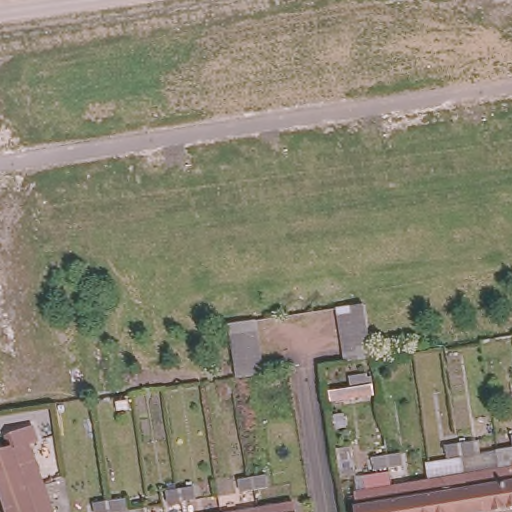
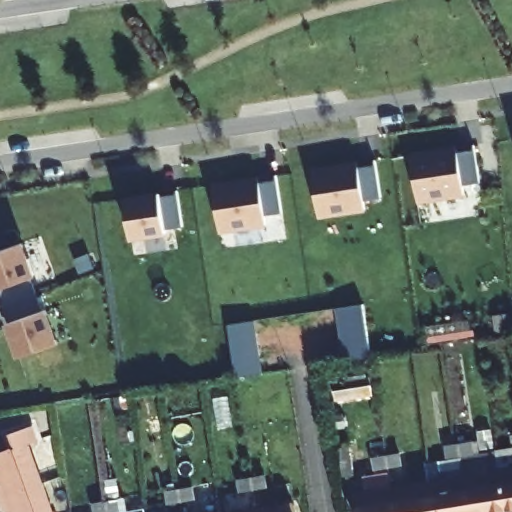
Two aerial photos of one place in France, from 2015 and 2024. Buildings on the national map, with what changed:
new [(480,180),(462,183),(464,193),(418,199),(412,154),(435,150),(435,154),(475,146),(480,180)]
new [(365,207),(320,214),(312,169),(336,165),(338,169),(360,166),(365,207)]
new [(282,211),(265,214),(266,223),(220,231),(213,185),(238,181),(240,185),(278,180),(282,211)]
new [(182,225),(167,227),(168,231),(132,237),(125,196),(144,194),(145,199),(178,192),(182,225)]
new [(30,278),(42,309),(47,308),(58,344),(20,357),(13,338),(17,336),(0,287),(0,251),(23,242),(35,276),(30,278)]
unchanged [(349,357),(344,358),(342,345),(340,332),(337,318),(335,305),(340,304),(362,301),(364,313),(366,327),(368,340),(370,353),(349,357)]
unchanged [(248,318),(253,317),(255,330),(260,358),(261,370),(256,371),(235,375),(233,361),(228,335),(225,321),(248,318)]
unchanged [(0,451),(10,447),(5,434),(30,425),(35,438),(27,442),(41,481),(1,495),(0,491),(0,451)]
unchanged [(457,442),(470,440),(472,451),(460,453),(446,456),(444,445),(457,442)]
unchanged [(338,474),(335,447),(347,445),(352,472),(338,474)]
unchanged [(372,455),(386,453),(399,451),(401,463),(388,465),(375,468),(372,455)]
unchanged [(512,467),(512,507),(506,507),(500,468),(512,467)]
unchanged [(506,507),(478,512),(469,512),(463,475),(500,468),(506,507)]
unchanged [(240,477),(252,475),(265,472),(267,485),(254,487),(241,489),(240,477)]
unchanged [(469,512),(434,512),(429,480),(463,475),(469,512)]
unchanged [(434,512),(396,512),(392,486),(429,480),(434,512)]
unchanged [(7,512),(1,495),(41,481),(52,512),(7,512)]
unchanged [(180,487),(193,485),(195,496),(181,499),(168,501),(166,489),(180,487)]
unchanged [(357,512),(355,492),(392,486),(396,512),(357,512)]
unchanged [(106,499),(119,497),(121,510),(108,511),(105,512),(95,512),(93,501),(106,499)]
unchanged [(296,512),(258,512),(257,508),(294,502),(296,512)]
unchanged [(258,512),(236,512),(257,508),(258,512)]

